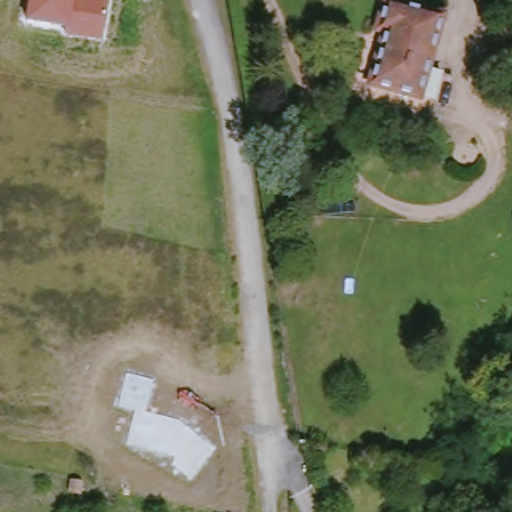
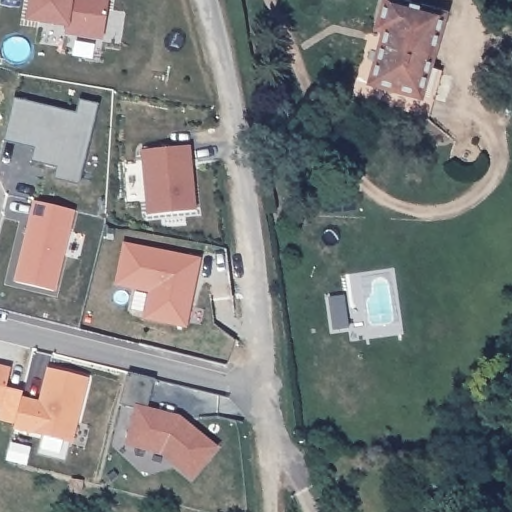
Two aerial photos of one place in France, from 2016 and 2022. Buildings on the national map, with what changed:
unchanged [(103,41),(65,35),(65,27),(25,20),(28,0),(108,0),(103,41)]
unchanged [(450,16),(425,104),(378,91),(395,40),(384,36),(395,0),(397,0),(450,16)]
new [(1,140),(12,97),(75,112),(78,98),(98,103),(79,182),(52,177),(54,167),(29,161),(32,147),(1,140)]
new [(190,147),(196,210),(147,216),(141,152),(190,147)]
new [(34,201),(71,210),(52,290),(15,281),(34,201)]
new [(123,242),(200,259),(187,327),(145,318),(150,292),(115,285),(123,242)]
new [(10,371),(0,407),(0,368),(10,371)]
new [(23,400),(41,403),(48,369),(86,379),(71,442),(17,430),(23,400)]
new [(127,371),(154,377),(145,409),(180,418),(215,447),(189,476),(171,460),(173,454),(126,442),(135,407),(118,403),(127,371)]

